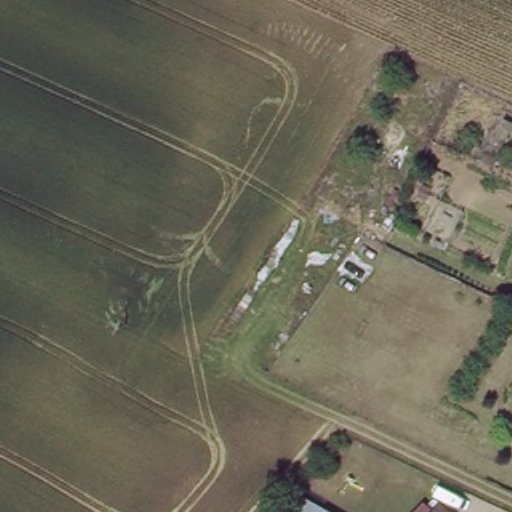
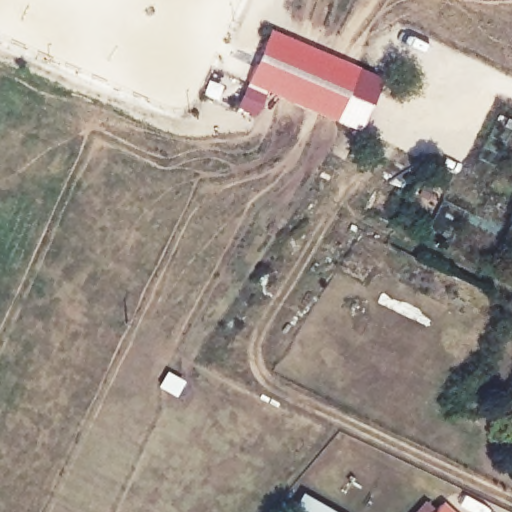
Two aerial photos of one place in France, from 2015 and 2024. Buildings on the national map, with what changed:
new [(352,66),(331,119),(250,83),(272,30),(352,66)]
new [(337,512),(301,512),(291,506),(301,490),(337,512)]
unchanged [(452,512),(438,512),(444,505),(452,512)]

